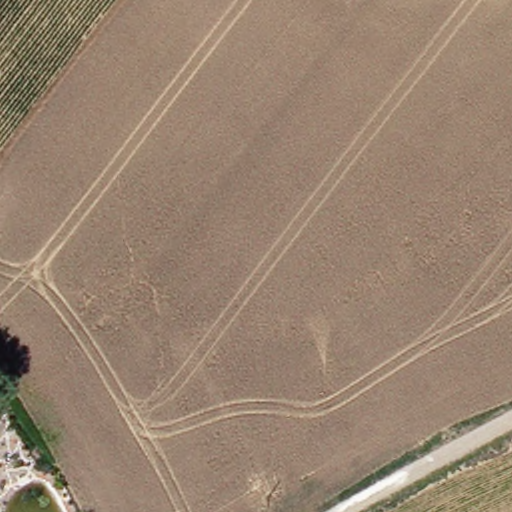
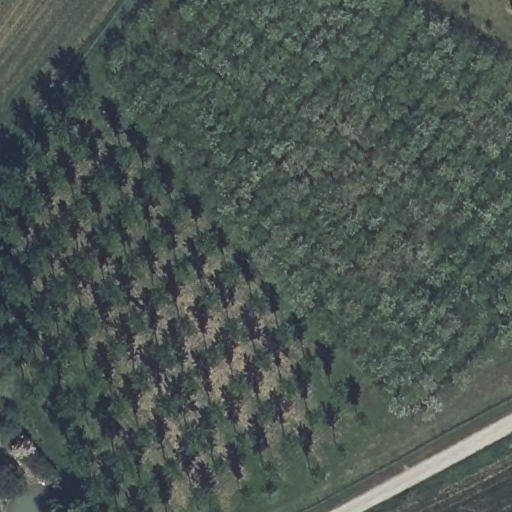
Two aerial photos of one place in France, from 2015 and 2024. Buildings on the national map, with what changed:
[]

